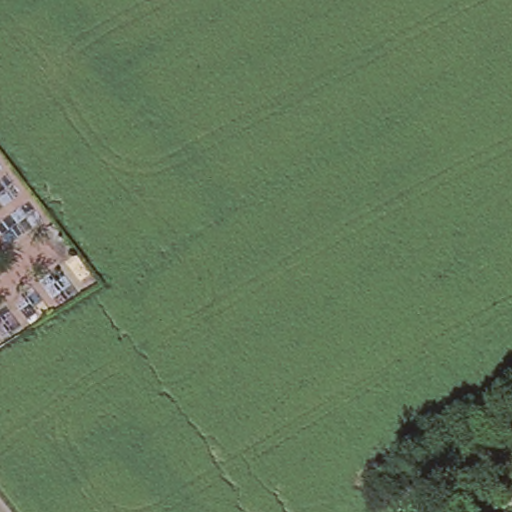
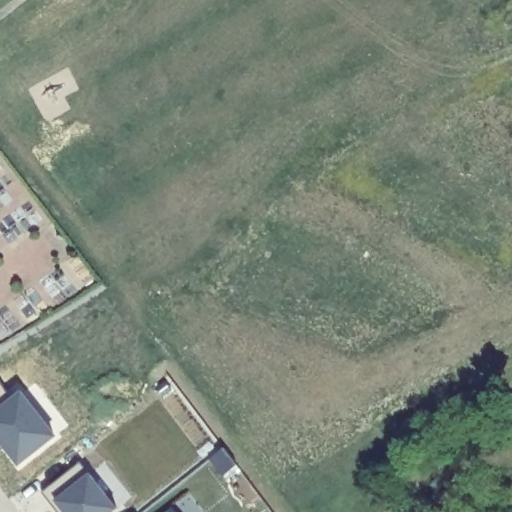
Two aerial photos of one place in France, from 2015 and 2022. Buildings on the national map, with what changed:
new [(18,391),(53,436),(17,466),(2,445),(0,448),(0,383),(10,397),(18,391)]
new [(225,448),(237,466),(225,476),(211,459),(225,448)]
new [(81,462),(118,509),(115,512),(57,512),(42,493),(81,462)]
new [(170,508),(173,512),(165,512),(170,508)]

